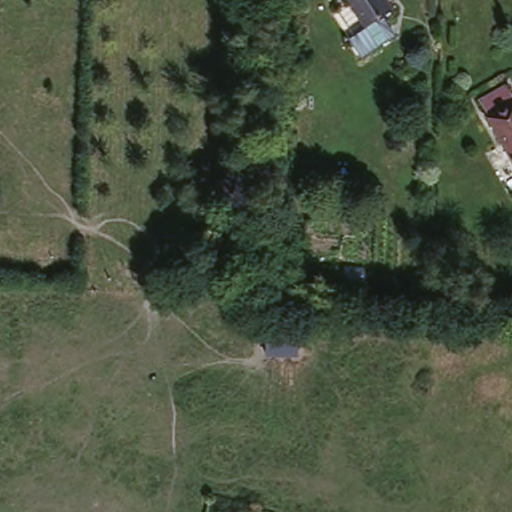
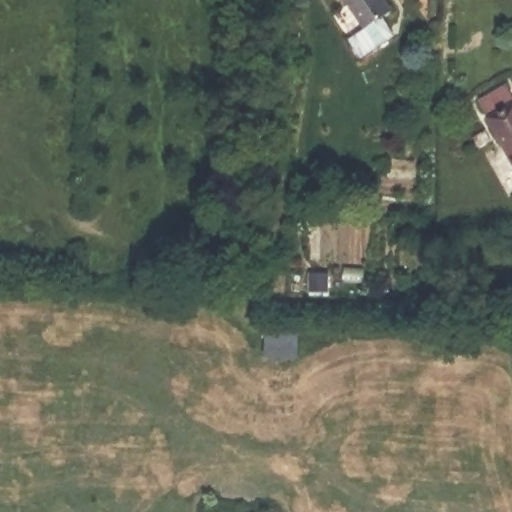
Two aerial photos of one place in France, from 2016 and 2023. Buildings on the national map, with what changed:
unchanged [(393,8),(366,24),(351,0),(388,0),(393,8)]
unchanged [(495,116),(487,103),(484,98),(508,84),(511,89),(512,91),(512,152),(490,118),(495,116)]

